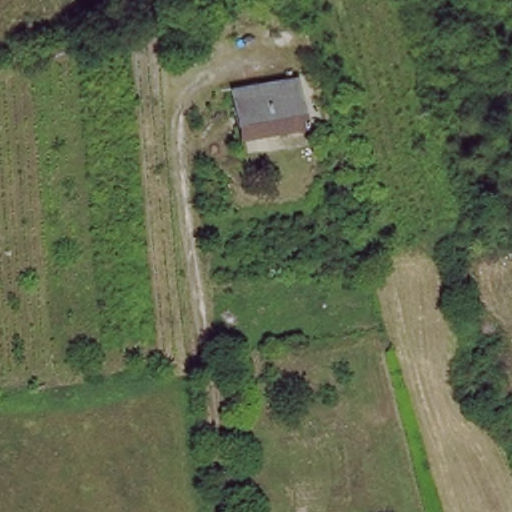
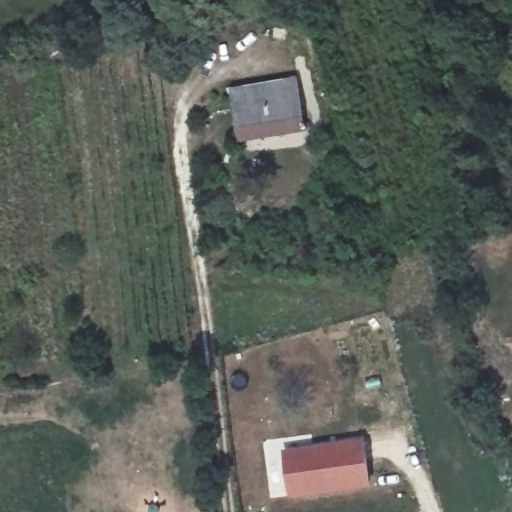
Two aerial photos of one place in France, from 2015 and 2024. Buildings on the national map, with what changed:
unchanged [(298,84),(307,133),(281,138),(279,126),(241,134),(235,96),(298,84)]
new [(365,440),(370,485),(289,492),(285,446),(365,440)]

